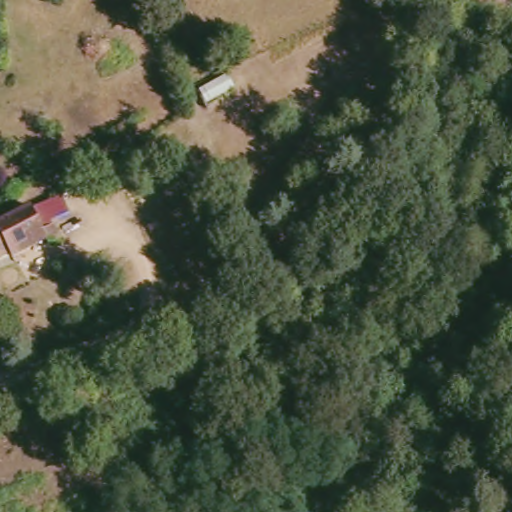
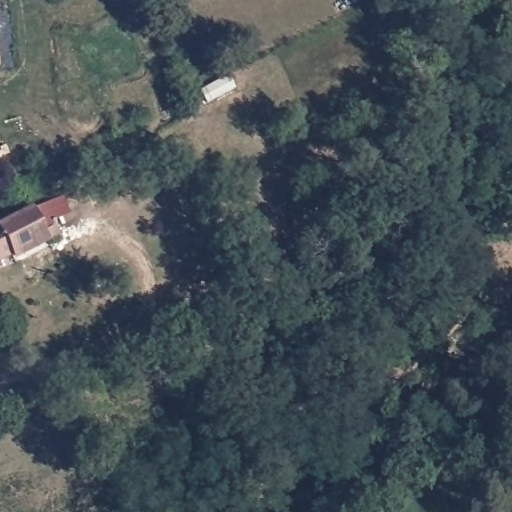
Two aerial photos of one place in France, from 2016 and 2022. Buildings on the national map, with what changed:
unchanged [(40,229),(58,222),(66,245),(51,251),(48,245),(0,263),(0,232),(35,217),(40,229)]

